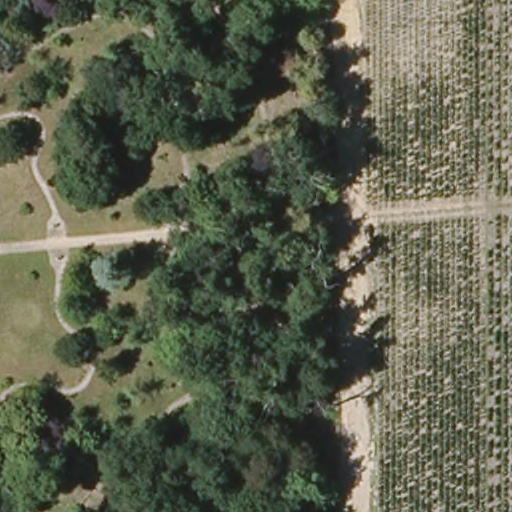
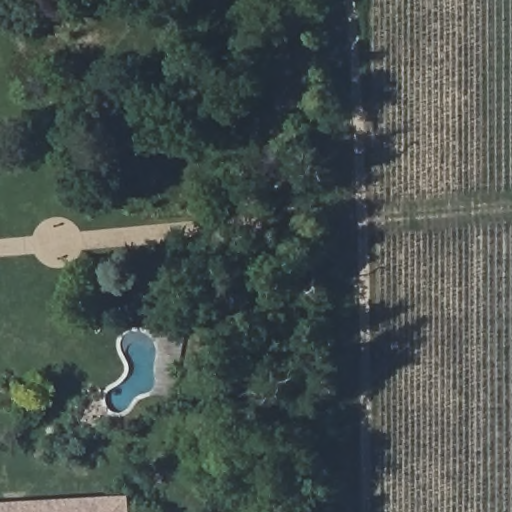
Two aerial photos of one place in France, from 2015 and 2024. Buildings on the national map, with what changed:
new [(0,503),(128,496),(128,512),(0,512),(0,503)]

